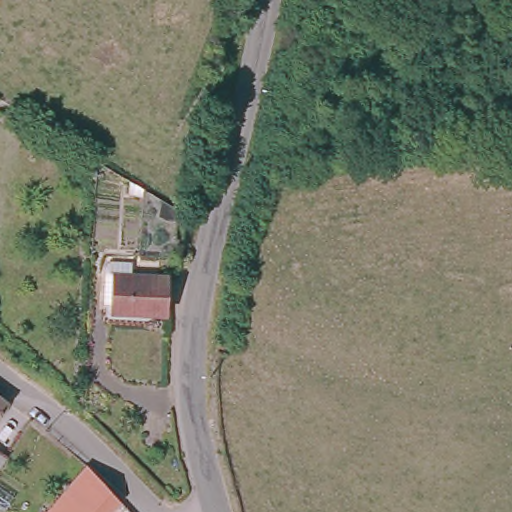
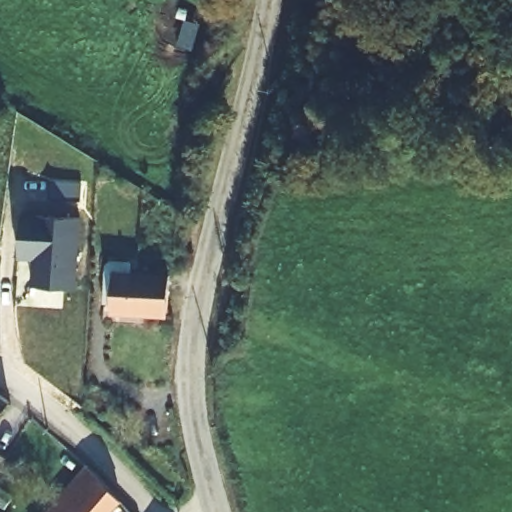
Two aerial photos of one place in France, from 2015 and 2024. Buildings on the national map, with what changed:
new [(34,260),(18,258),(21,215),(80,218),(78,289),(31,284),(34,260)]
unchanged [(106,262),(107,261),(127,263),(126,274),(162,277),(161,314),(123,310),(123,315),(105,313),(106,304),(99,304),(99,282),(98,268),(106,262)]
unchanged [(0,412),(0,400),(5,404),(0,412)]
unchanged [(0,465),(0,456),(4,458),(0,465)]
unchanged [(82,467),(116,507),(112,512),(43,512),(82,467)]

